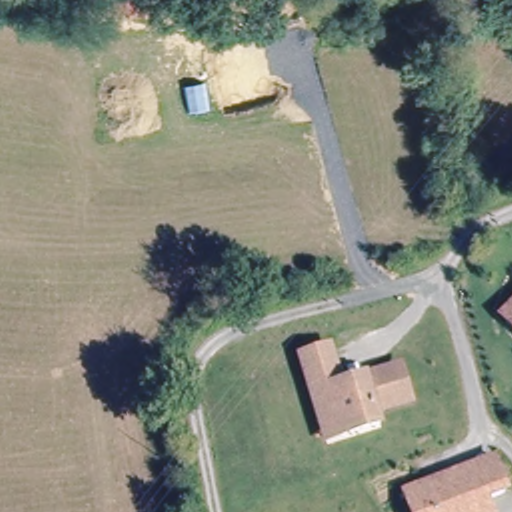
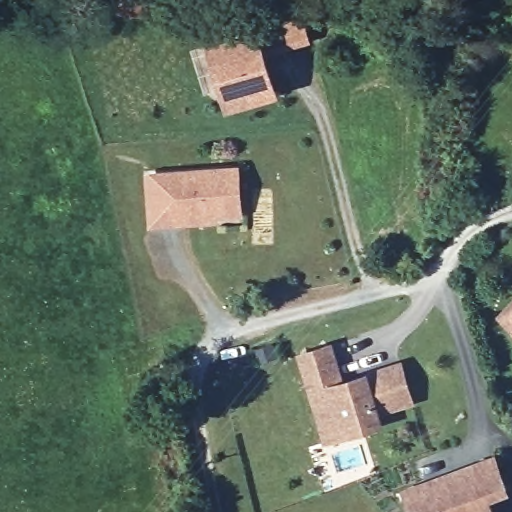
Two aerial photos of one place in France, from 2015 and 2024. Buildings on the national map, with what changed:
new [(265,53),(278,94),(226,111),(219,87),(205,92),(194,52),(207,47),(205,43),(260,29),(302,16),(310,41),(265,53)]
new [(242,214),(219,215),(219,223),(151,226),(146,172),(239,166),(242,214)]
unchanged [(512,307),(512,326),(502,317),(512,307)]
unchanged [(323,428),(306,376),(301,358),(330,348),(335,366),(342,386),(400,367),(412,402),(377,413),(381,425),(351,435),(328,442),(323,428)]
unchanged [(406,495),(476,469),(476,467),(495,460),(502,477),(508,493),(488,502),(491,511),(492,512),(413,512),(406,495)]

